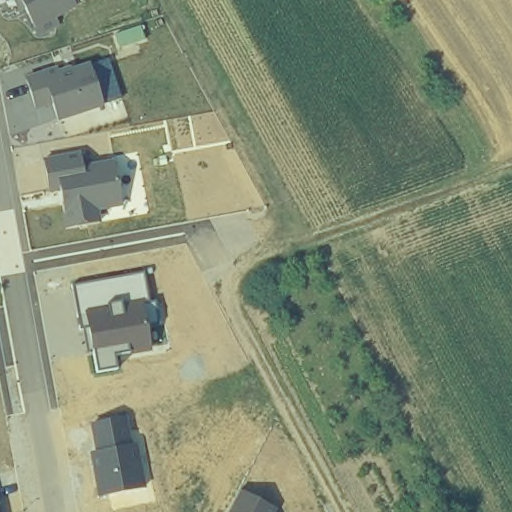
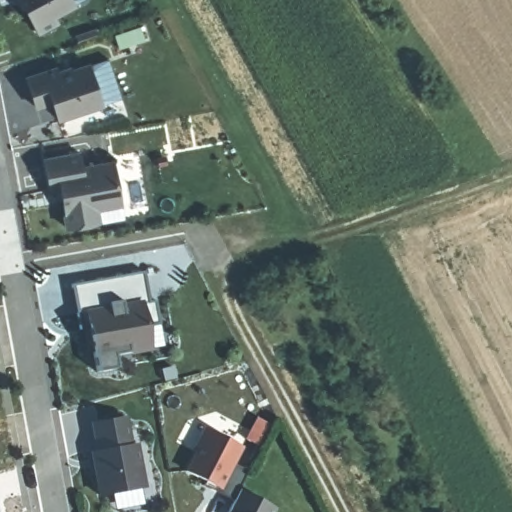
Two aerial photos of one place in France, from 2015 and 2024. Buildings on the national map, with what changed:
unchanged [(78,4),(37,28),(19,0),(75,0),(78,4)]
unchanged [(25,76),(60,65),(62,72),(108,58),(123,99),(105,106),(57,121),(52,106),(36,110),(25,76)]
unchanged [(44,159),(80,151),(80,152),(83,163),(110,157),(123,201),(95,207),(100,222),(70,227),(62,191),(50,192),(44,159)]
unchanged [(90,325),(80,327),(73,285),(145,271),(155,319),(146,321),(151,347),(114,354),(118,368),(100,372),(90,325)]
unchanged [(99,496),(91,453),(97,451),(90,424),(122,417),(130,445),(136,444),(146,487),(99,496)]
new [(203,487),(206,482),(185,471),(195,452),(192,451),(205,427),(243,449),(235,465),(247,472),(233,498),(203,487)]
unchanged [(277,509),(277,512),(229,512),(241,490),(277,509)]

